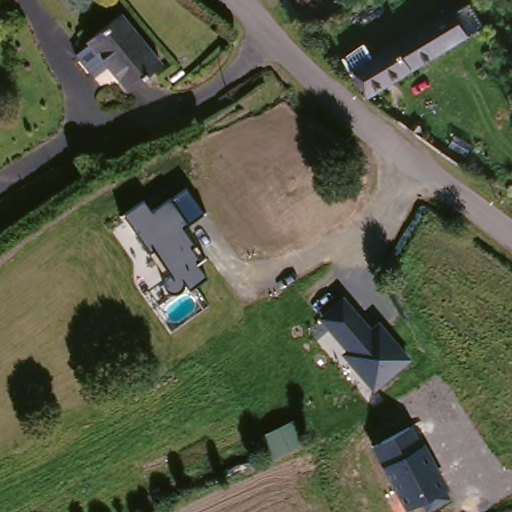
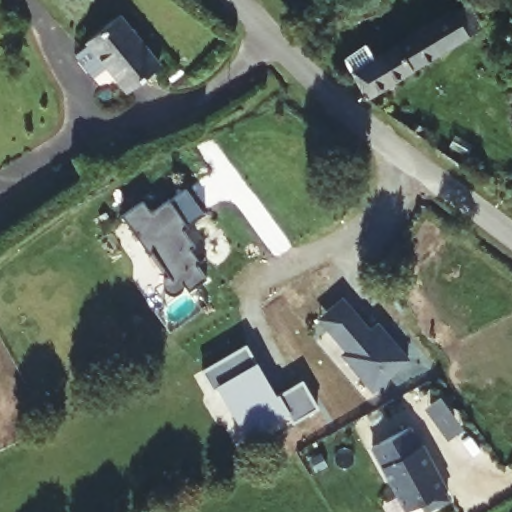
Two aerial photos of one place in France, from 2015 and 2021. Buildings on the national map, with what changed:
unchanged [(286,0),(304,0),(290,7),(286,0)]
unchanged [(361,44),(369,57),(451,10),(464,2),(479,28),(465,36),(364,96),(339,57),(361,44)]
unchanged [(129,86),(108,63),(99,70),(80,48),(90,40),(89,38),(122,11),(161,60),(129,86)]
unchanged [(141,204),(148,214),(186,187),(204,214),(181,229),(193,243),(189,249),(199,262),(193,267),(204,280),(190,292),(186,286),(173,297),(161,283),(164,277),(123,216),(141,204)]
unchanged [(338,352),(344,347),(316,317),(341,296),(373,329),(379,323),(410,364),(374,392),(338,352)]
new [(218,388),(214,390),(203,372),(246,348),(257,364),(277,398),(303,384),(319,411),(295,423),(289,416),(248,440),(218,388)]
unchanged [(271,461),(260,436),(292,422),(302,447),(271,461)]
unchanged [(427,512),(425,512),(421,504),(406,512),(381,468),(371,450),(411,427),(422,445),(424,444),(449,491),(446,493),(450,500),(427,512)]

